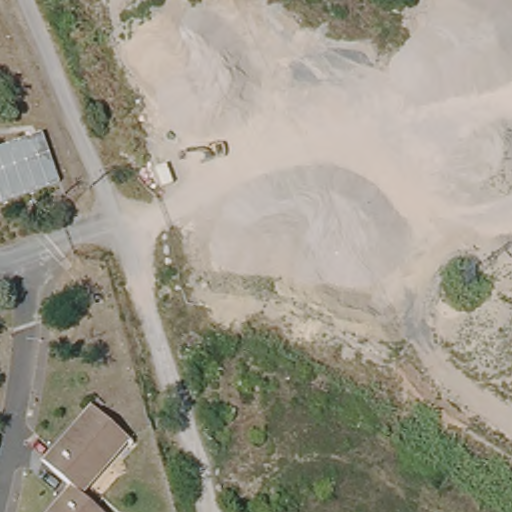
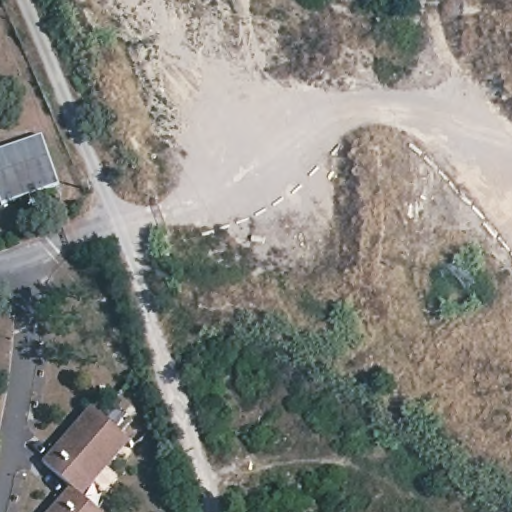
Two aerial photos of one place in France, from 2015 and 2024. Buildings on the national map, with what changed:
unchanged [(0,154),(44,139),(61,190),(3,210),(0,199),(0,154)]
unchanged [(130,441),(81,497),(70,487),(41,462),(90,406),(130,441)]
unchanged [(99,512),(47,512),(70,487),(81,497),(99,512)]

